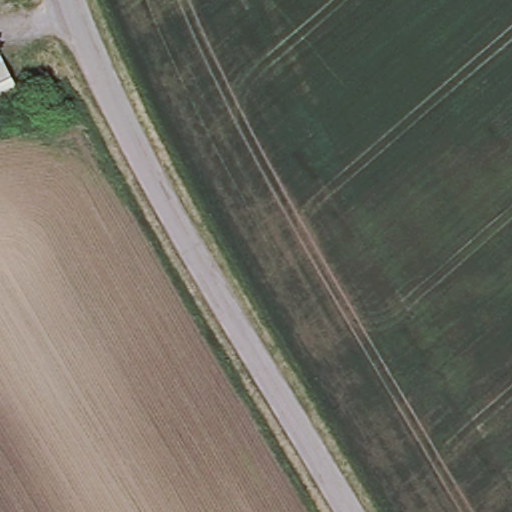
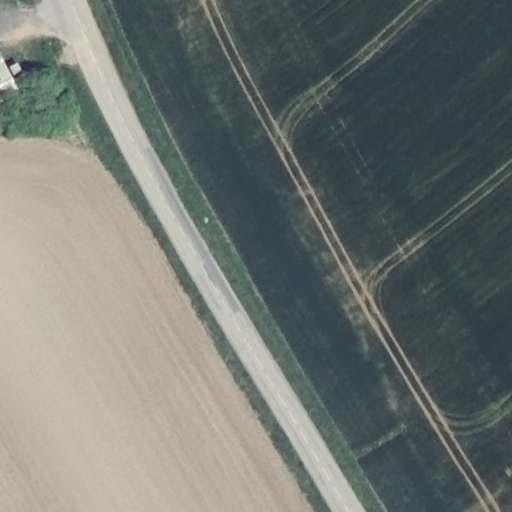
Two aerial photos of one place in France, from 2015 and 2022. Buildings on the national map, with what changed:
unchanged [(23,96),(0,105),(0,64),(5,62),(23,96)]

